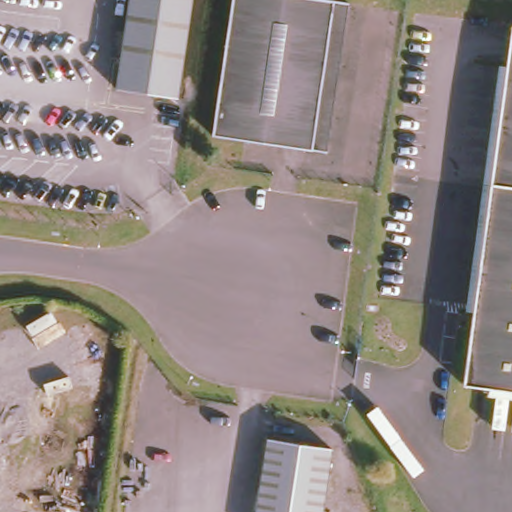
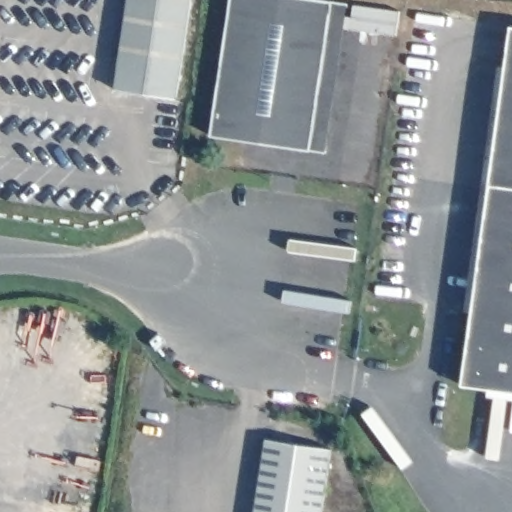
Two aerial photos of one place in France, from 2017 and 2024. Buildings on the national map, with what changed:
unchanged [(122,87),(135,0),(198,0),(183,97),(122,87)]
unchanged [(312,149),(212,134),(233,0),(329,0),(336,1),(312,149)]
unchanged [(351,3),(327,152),(312,149),(336,1),(351,3)]
unchanged [(511,26),(512,26),(512,393),(465,387),(511,26)]
unchanged [(337,451),(328,512),(262,512),(272,441),(337,451)]

